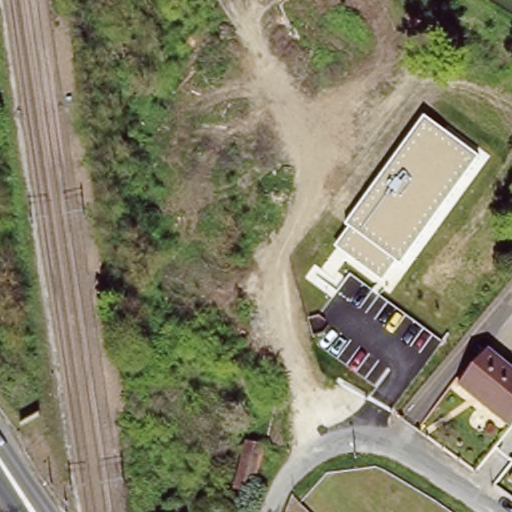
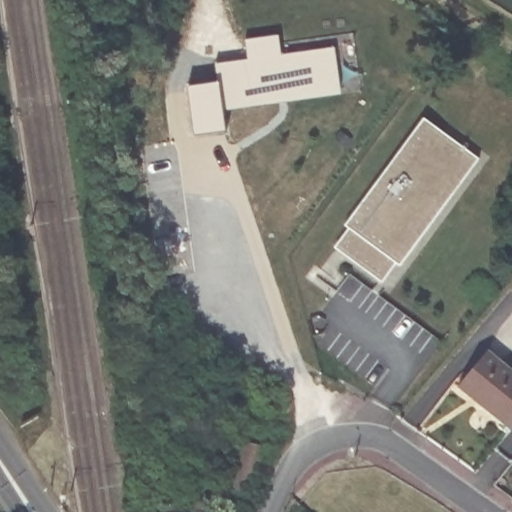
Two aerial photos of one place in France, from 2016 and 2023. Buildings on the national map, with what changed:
new [(231,113),(233,127),(227,129),(196,133),(189,83),(220,79),(217,62),(250,59),(247,38),(281,34),(283,53),(337,46),(345,93),(231,113)]
unchanged [(335,246),(349,227),(346,223),(424,118),(480,159),(401,263),(397,259),(384,282),(335,246)]
demolished [(355,282),(396,315),(390,323),(399,331),(382,352),(331,311),(355,282)]
unchanged [(460,388),(491,351),(512,369),(512,432),(460,388)]
unchanged [(250,442),(265,448),(247,490),(232,484),(250,442)]
unchanged [(509,480),(512,476),(512,483),(509,480)]

